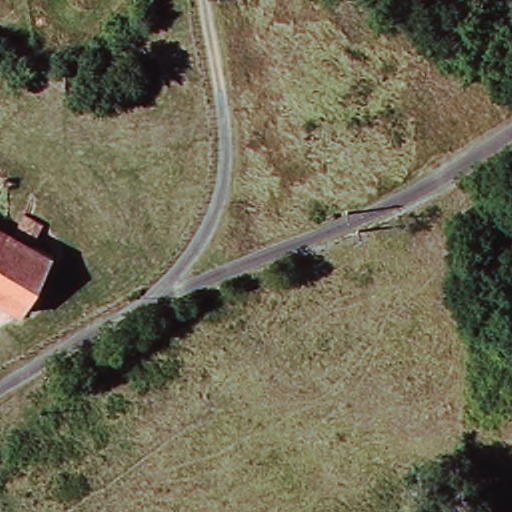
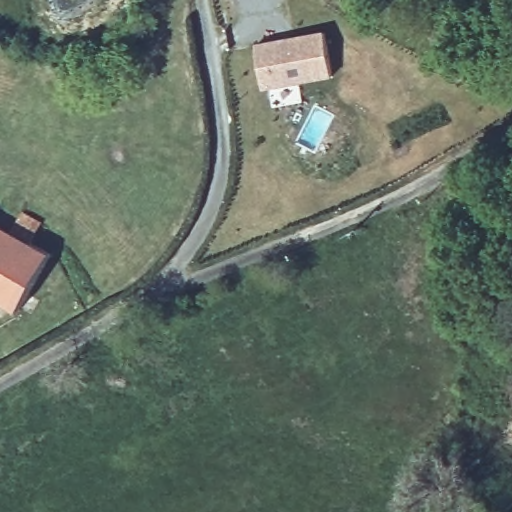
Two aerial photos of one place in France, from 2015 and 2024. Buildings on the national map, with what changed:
new [(295,38),(326,33),(334,75),(265,87),(257,44),(278,41),(295,38)]
unchanged [(12,232),(20,219),(37,229),(30,242),(50,254),(18,309),(0,299),(0,225),(12,232)]

